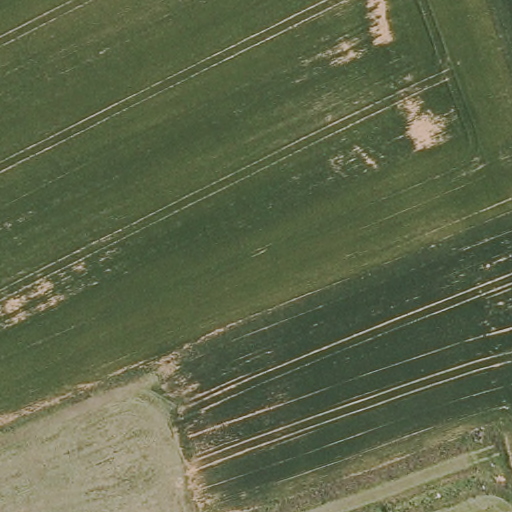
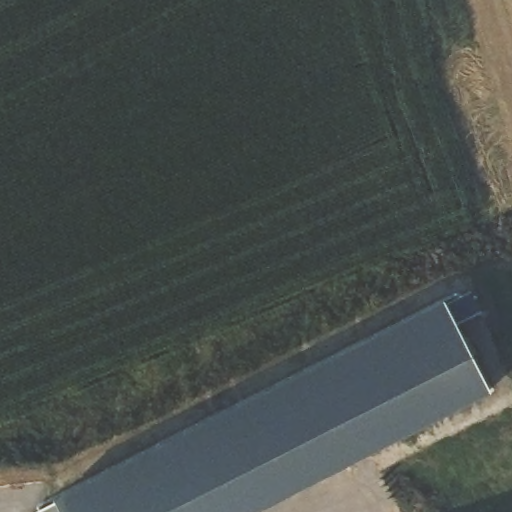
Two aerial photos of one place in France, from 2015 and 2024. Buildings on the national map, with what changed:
new [(489,399),(264,512),(56,512),(448,312),(489,399)]

